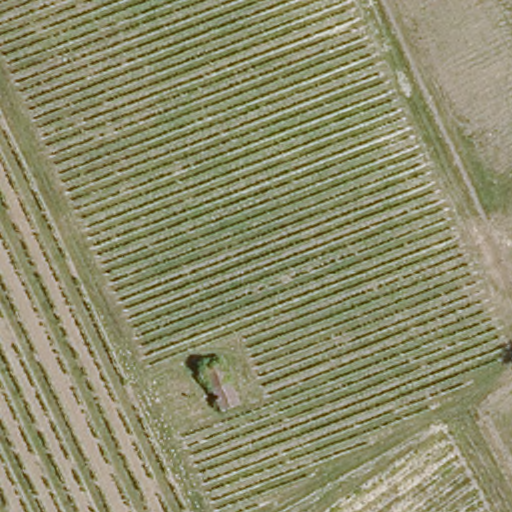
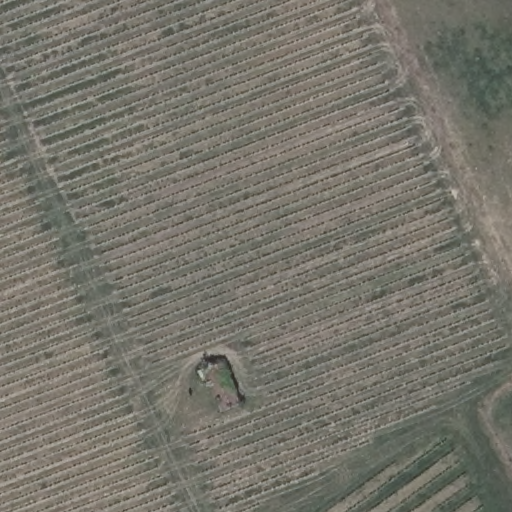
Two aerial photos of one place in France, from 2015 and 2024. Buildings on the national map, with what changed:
unchanged [(234,404),(217,412),(200,370),(214,362),(234,404)]

